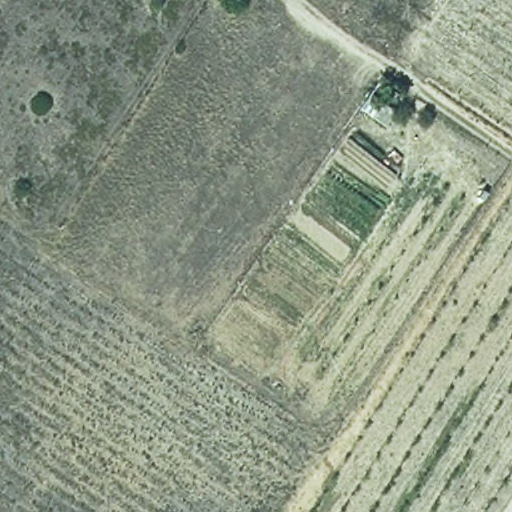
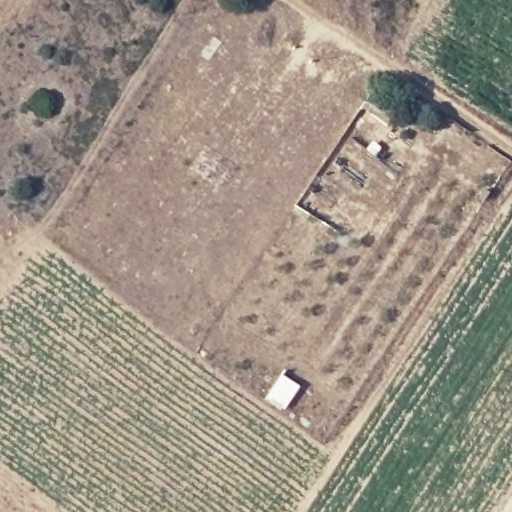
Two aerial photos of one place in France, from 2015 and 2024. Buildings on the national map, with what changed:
unchanged [(230,4),(223,0),(233,0),(230,4)]
unchanged [(377,97),(397,111),(387,126),(370,114),(377,97)]

